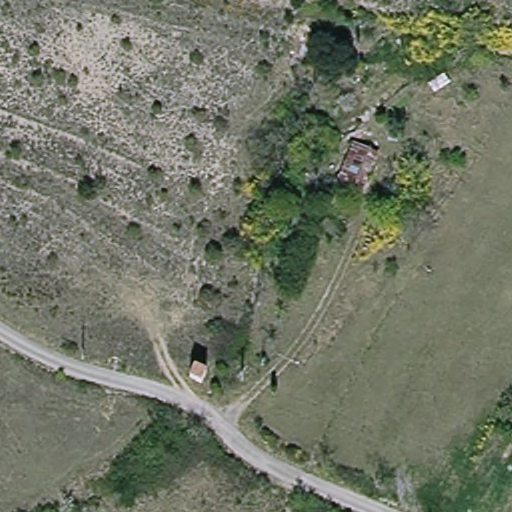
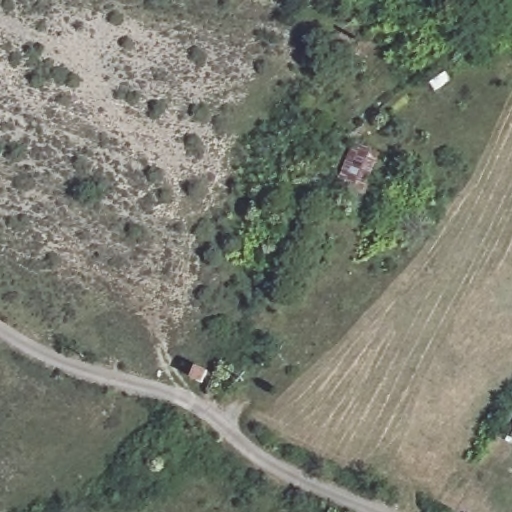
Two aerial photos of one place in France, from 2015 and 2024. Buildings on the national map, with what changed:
unchanged [(364,196),(336,186),(354,143),(381,152),(364,196)]

